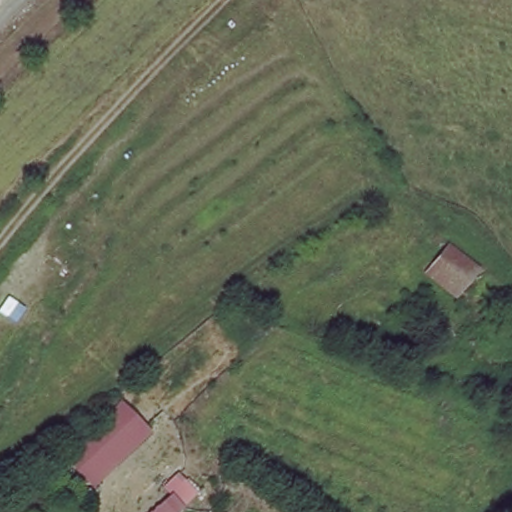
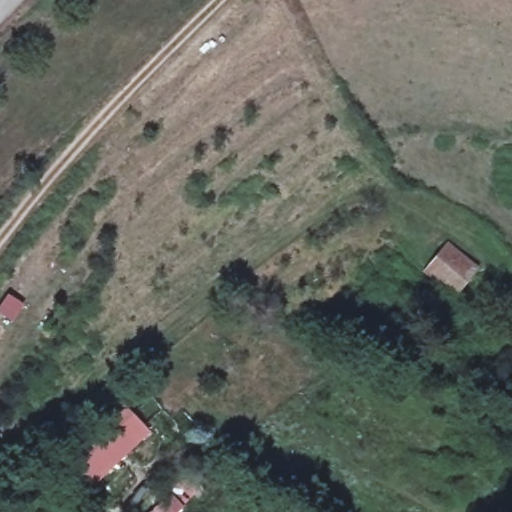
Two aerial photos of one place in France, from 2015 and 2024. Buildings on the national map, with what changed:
unchanged [(446,249),(474,272),(452,297),(425,273),(446,249)]
unchanged [(151,435),(92,493),(52,457),(117,396),(151,435)]
unchanged [(180,476),(195,498),(180,512),(144,512),(180,476)]

